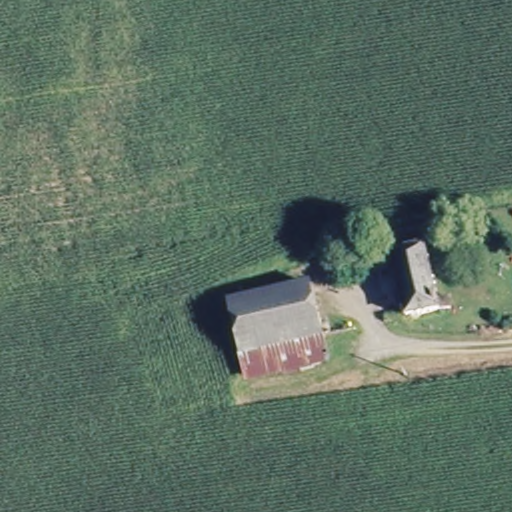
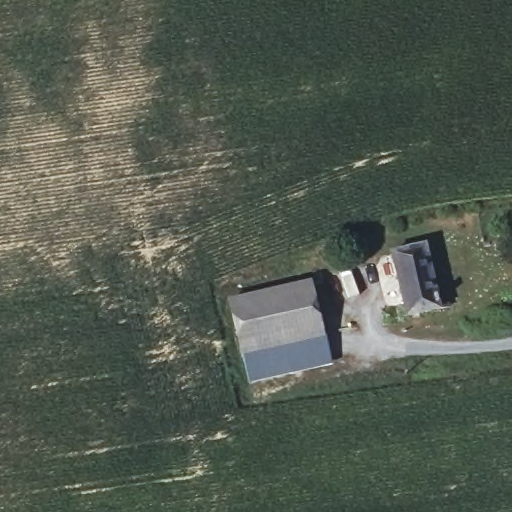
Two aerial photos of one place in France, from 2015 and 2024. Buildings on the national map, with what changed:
unchanged [(420,240),(430,289),(441,288),(445,302),(402,310),(388,248),(420,240)]
unchanged [(305,277),(313,314),(234,334),(227,295),(305,277)]
unchanged [(313,314),(318,332),(237,349),(234,334),(313,314)]
unchanged [(318,332),(323,359),(242,377),(237,349),(318,332)]

